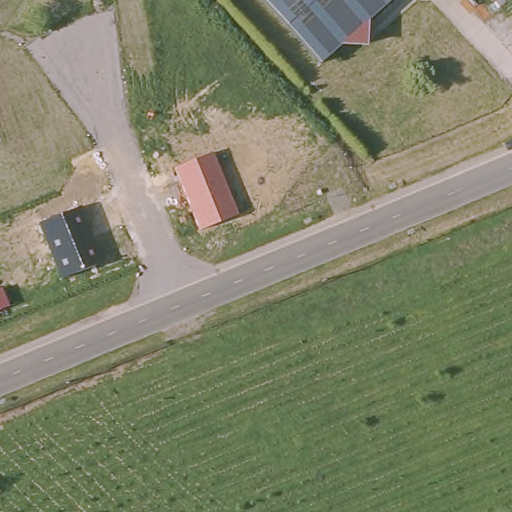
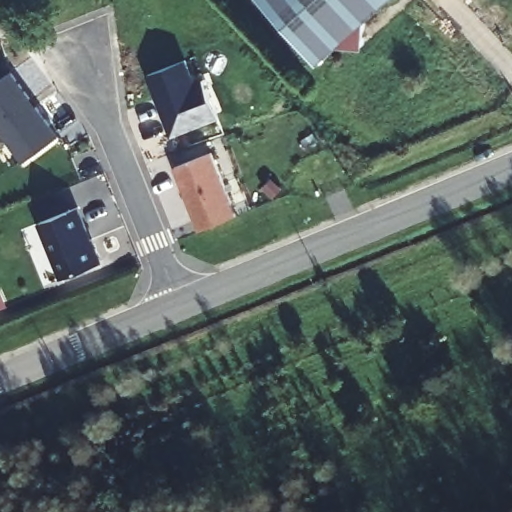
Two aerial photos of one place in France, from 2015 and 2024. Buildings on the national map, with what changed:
unchanged [(317,59),(266,0),(382,0),(317,59)]
new [(195,85),(205,81),(219,117),(173,135),(150,75),(186,60),(195,85)]
new [(53,136),(20,160),(0,134),(0,76),(5,72),(53,136)]
unchanged [(214,153),(238,216),(199,230),(175,166),(214,153)]
unchanged [(84,206),(104,262),(58,278),(39,221),(84,206)]

